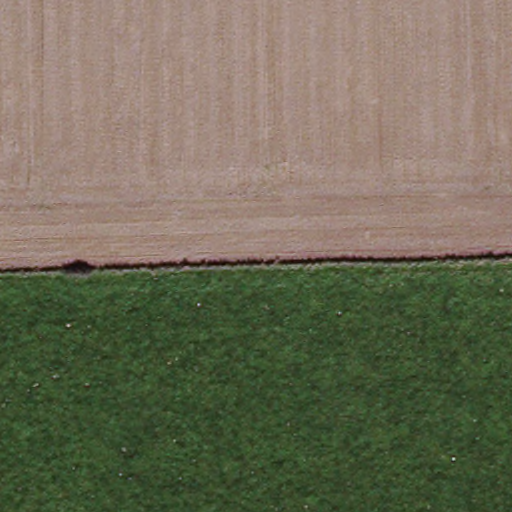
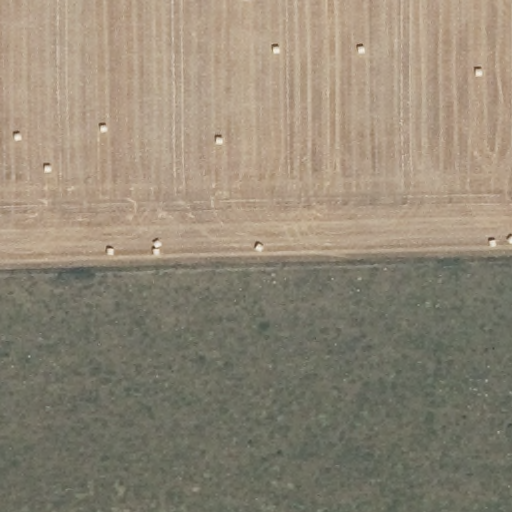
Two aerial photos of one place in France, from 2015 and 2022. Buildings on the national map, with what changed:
[]

